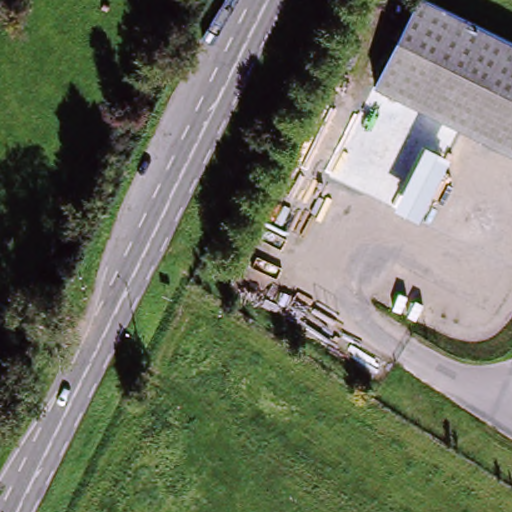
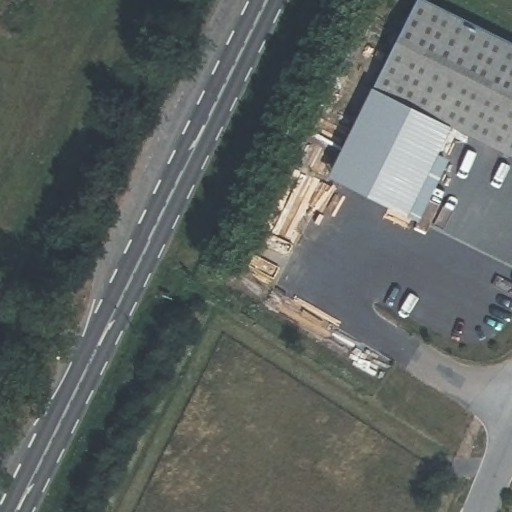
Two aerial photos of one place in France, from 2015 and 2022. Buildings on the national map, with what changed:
unchanged [(421,0),(431,0),(512,40),(512,151),(379,85),(421,0)]
new [(455,123),(440,154),(451,159),(421,222),(409,215),(328,175),(376,84),(379,85),(455,123)]

